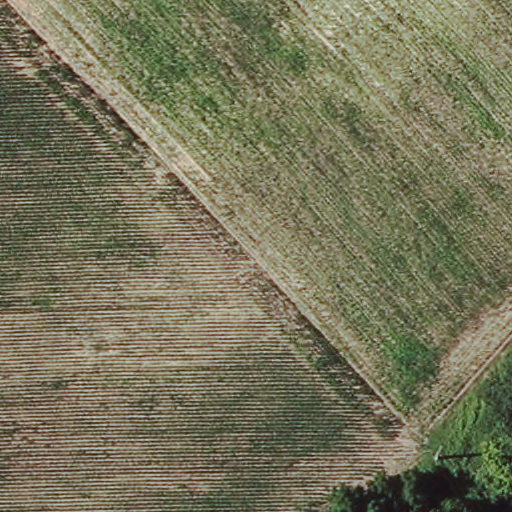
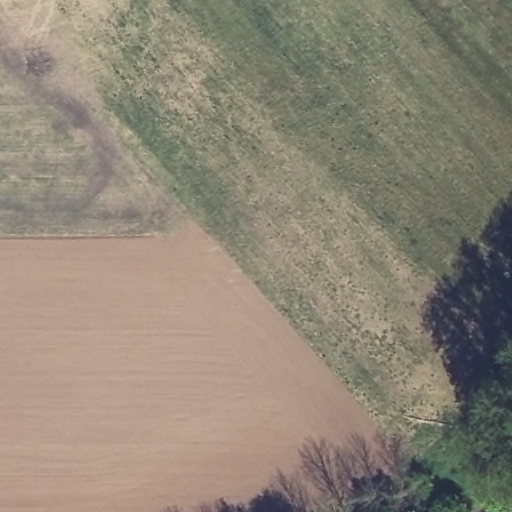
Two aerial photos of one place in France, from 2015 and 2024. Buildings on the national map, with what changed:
[]

